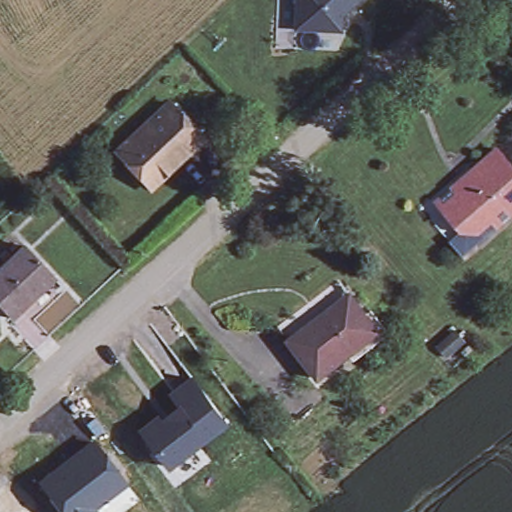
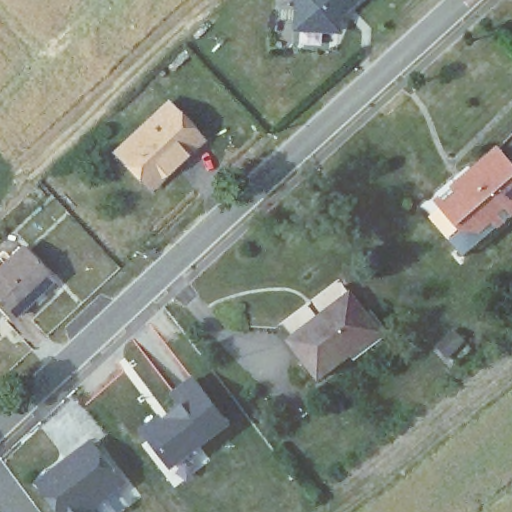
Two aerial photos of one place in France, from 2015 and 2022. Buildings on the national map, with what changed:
unchanged [(344,0),(338,5),(336,29),(292,24),(295,0),(344,0)]
unchanged [(204,139),(151,188),(117,149),(169,99),(204,139)]
unchanged [(506,146),(512,153),(512,216),(468,251),(428,200),(475,163),(480,168),(506,146)]
unchanged [(56,277),(12,316),(0,302),(0,273),(30,246),(56,277)]
unchanged [(383,343),(323,388),(283,336),(342,289),(383,343)]
unchanged [(462,347),(444,362),(435,349),(452,335),(462,347)]
unchanged [(175,470),(144,429),(162,414),(168,419),(183,409),(171,391),(193,374),(233,426),(175,470)]
unchanged [(96,507),(99,512),(61,512),(38,482),(90,438),(127,485),(96,507)]

